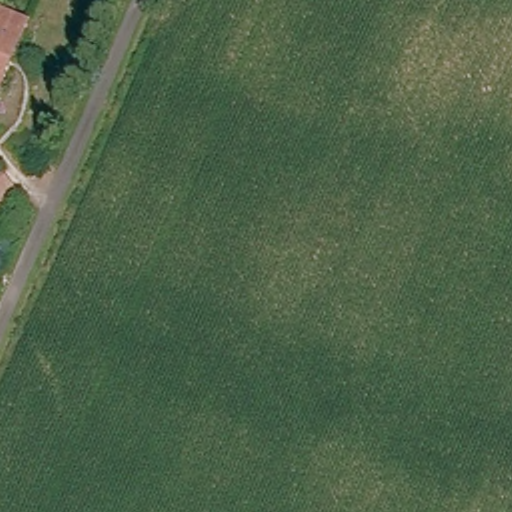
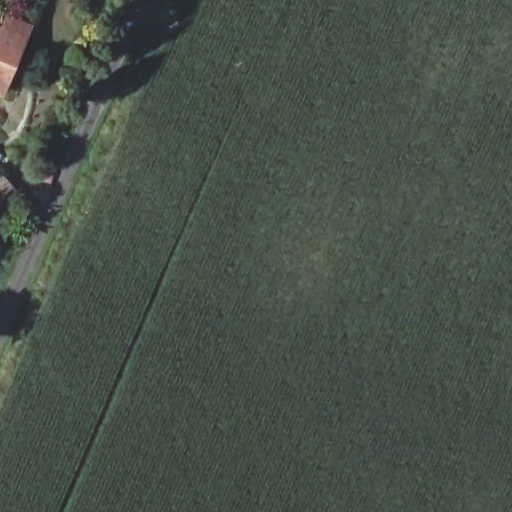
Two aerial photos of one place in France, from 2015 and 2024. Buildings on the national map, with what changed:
unchanged [(0,91),(0,10),(34,26),(12,71),(2,92),(0,91)]

